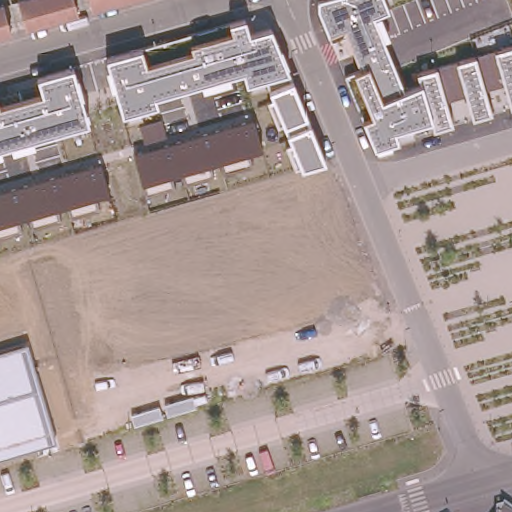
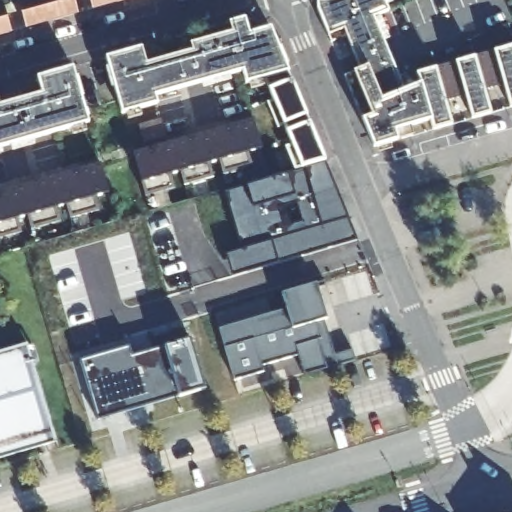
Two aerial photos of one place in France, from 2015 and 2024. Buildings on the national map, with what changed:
unchanged [(53,21),(26,29),(18,2),(24,0),(46,0),(53,21)]
unchanged [(77,14),(53,21),(46,0),(73,0),(77,14)]
unchanged [(124,1),(93,10),(90,0),(123,0),(124,1)]
unchanged [(124,1),(123,0),(129,0),(124,1)]
unchanged [(504,83),(485,87),(492,112),(472,118),(465,92),(445,98),(452,124),(433,129),(431,119),(411,126),(415,135),(399,140),(390,142),(391,145),(377,149),(376,145),(374,145),(363,118),(345,75),(354,71),(360,69),(347,35),(332,41),(328,34),(317,8),(318,0),(323,0),(324,0),(385,0),(389,10),(381,14),(390,38),(384,41),(405,90),(421,83),(417,72),(437,66),(456,61),(475,56),(494,50),(512,45),(512,108),(511,108),(504,83)]
unchanged [(5,33),(0,35),(0,17),(5,33)]
unchanged [(273,98),(269,89),(265,87),(252,90),(250,81),(247,82),(244,71),(229,74),(232,81),(203,90),(201,83),(155,96),(157,104),(140,109),(143,116),(129,120),(127,112),(122,113),(115,86),(111,86),(106,68),(109,67),(107,58),(142,48),(153,45),(218,26),(230,22),(245,17),(250,33),(270,27),(279,47),(282,46),(289,64),(286,65),(288,71),(292,80),(306,116),(309,123),(325,160),(301,167),(296,168),(287,146),(292,141),(287,131),(284,123),(279,127),(268,102),(273,98)]
unchanged [(73,67),(75,75),(78,75),(84,95),(81,96),(85,109),(88,108),(90,116),(86,117),(88,122),(89,130),(74,134),(73,129),(34,139),(35,144),(13,150),(11,145),(1,148),(2,154),(0,155),(0,106),(42,93),(37,77),(73,67)]
unchanged [(253,118),(263,148),(250,151),(252,163),(225,172),(220,159),(206,163),(210,174),(184,181),(179,170),(168,173),(172,186),(146,194),(142,182),(133,152),(253,118)]
new [(242,248),(229,202),(232,201),(227,191),(247,185),(286,175),(297,171),(296,168),(301,167),(325,160),(356,238),(232,274),(226,254),(242,248)]
unchanged [(102,162),(110,191),(95,195),(97,206),(73,213),(70,204),(57,207),(59,218),(33,225),(29,215),(16,218),(19,230),(0,236),(0,191),(102,162)]
new [(325,322),(336,356),(352,351),(357,362),(306,376),(300,356),(261,367),(263,375),(234,383),(218,328),(287,308),(283,294),(317,284),(325,322)]
new [(129,346),(133,356),(166,345),(189,339),(203,386),(178,395),(98,419),(81,360),(129,346)]
unchanged [(56,441),(0,458),(0,351),(28,343),(56,441)]

